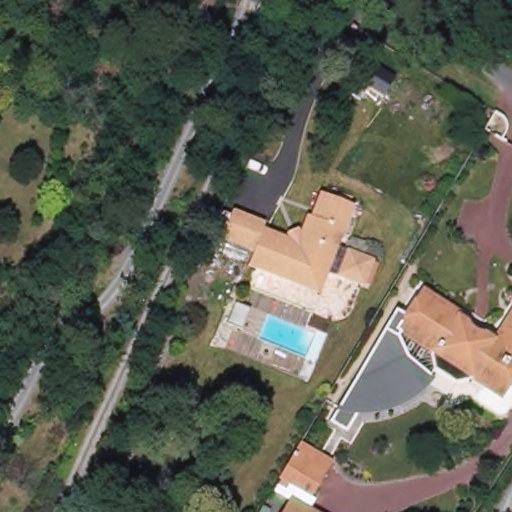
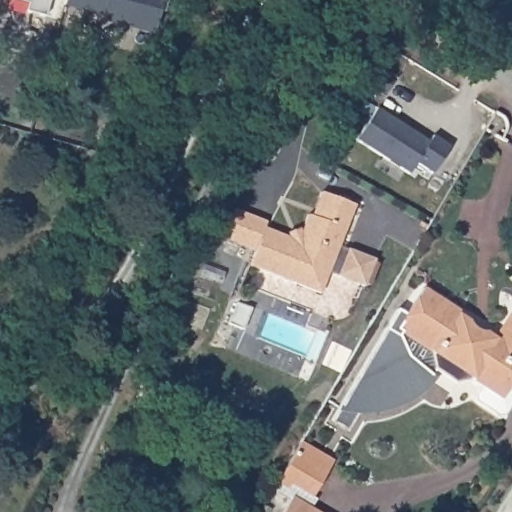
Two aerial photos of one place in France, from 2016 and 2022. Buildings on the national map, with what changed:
new [(27,10),(30,1),(26,0),(51,0),(47,15),(27,10)]
new [(170,0),(167,13),(161,10),(155,32),(104,19),(105,14),(67,4),(67,0),(170,0)]
new [(366,57),(396,76),(385,94),(354,75),(366,57)]
new [(377,106),(428,140),(433,134),(450,145),(433,172),(417,161),(410,173),(356,138),(377,106)]
unchanged [(296,285),(247,265),(252,252),(262,228),(288,239),(284,233),(296,228),(298,232),(306,212),(310,214),(318,191),(352,204),(336,244),(328,264),(325,271),(324,274),(316,293),(296,285)]
unchanged [(252,252),(221,239),(211,235),(220,212),(230,216),(232,211),(263,223),(262,228),(252,252)]
unchanged [(325,271),(328,264),(336,244),(372,259),(361,285),(325,271)]
unchanged [(501,400),(472,382),(470,385),(456,387),(452,383),(436,374),(433,361),(436,358),(402,337),(430,294),(464,316),(462,319),(471,325),(471,330),(480,336),(487,335),(495,340),(512,313),(512,382),(501,400)]
unchanged [(290,458),(297,445),(330,463),(322,477),(308,501),(275,483),(290,458)]
unchanged [(292,493),(308,501),(304,505),(316,512),(281,512),(292,493)]

